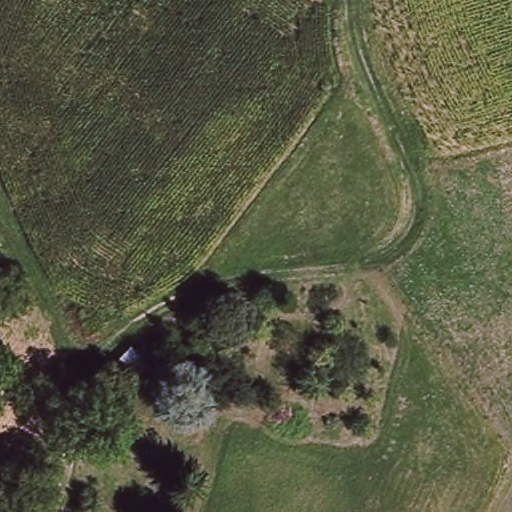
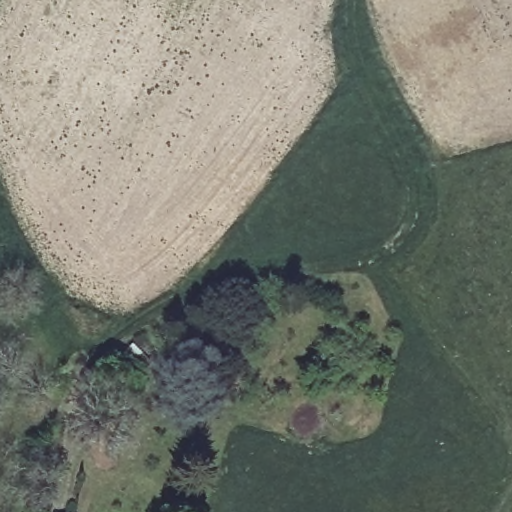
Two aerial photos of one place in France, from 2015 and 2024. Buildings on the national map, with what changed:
[]

